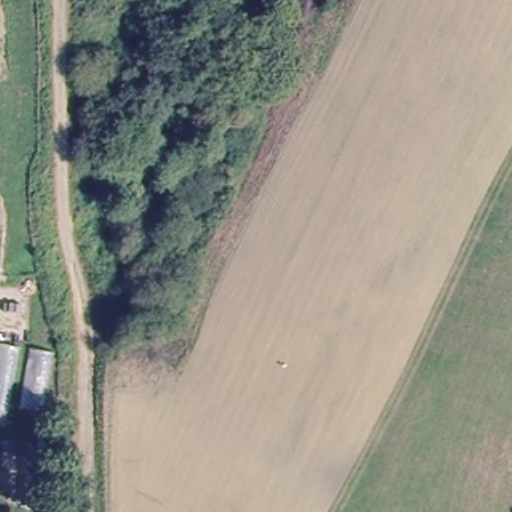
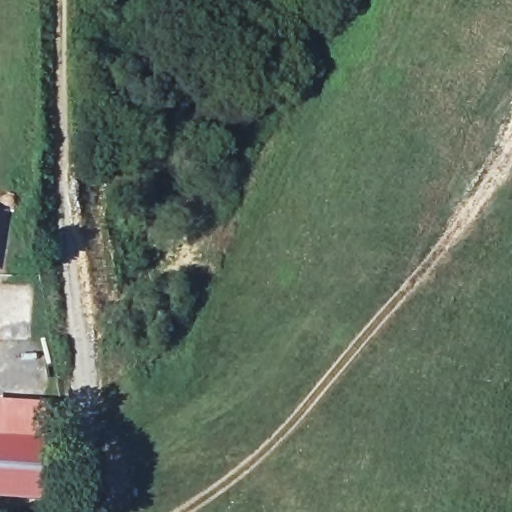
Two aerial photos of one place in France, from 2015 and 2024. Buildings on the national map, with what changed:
unchanged [(20,347),(6,427),(0,426),(0,342),(20,347)]
new [(40,438),(38,499),(0,498),(0,436),(40,438)]

